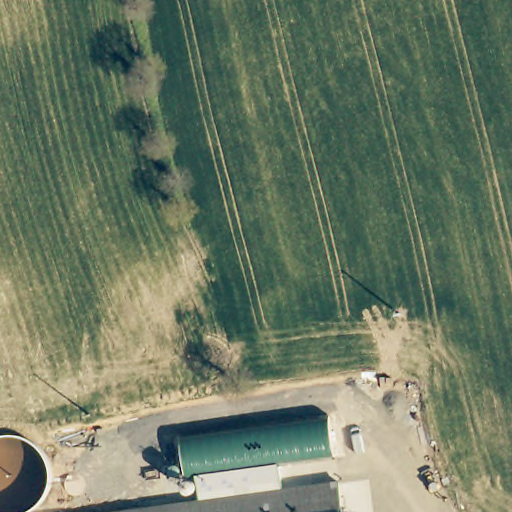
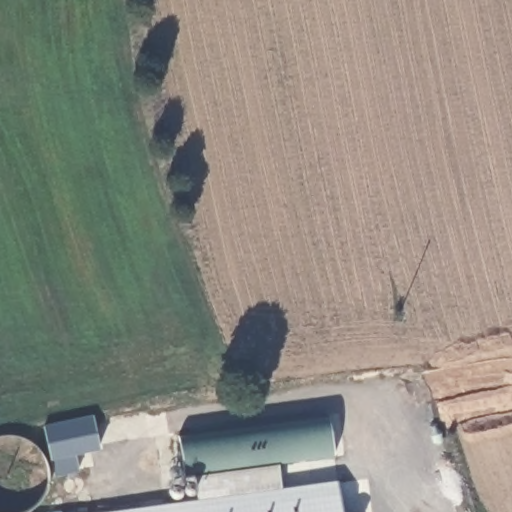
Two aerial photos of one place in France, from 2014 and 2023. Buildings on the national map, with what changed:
new [(44,424),(94,413),(101,448),(75,453),(79,471),(55,476),(44,424)]
unchanged [(107,512),(198,499),(197,476),(185,477),(179,438),(331,417),(336,456),(279,464),(282,487),(338,480),(338,490),(189,512),(107,512)]
unchanged [(341,512),(189,512),(338,490),(341,512)]

